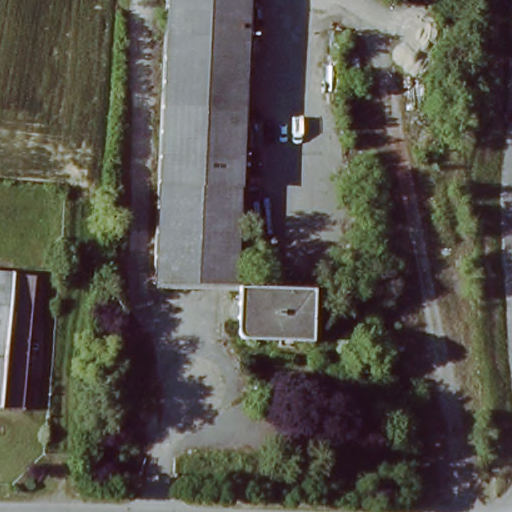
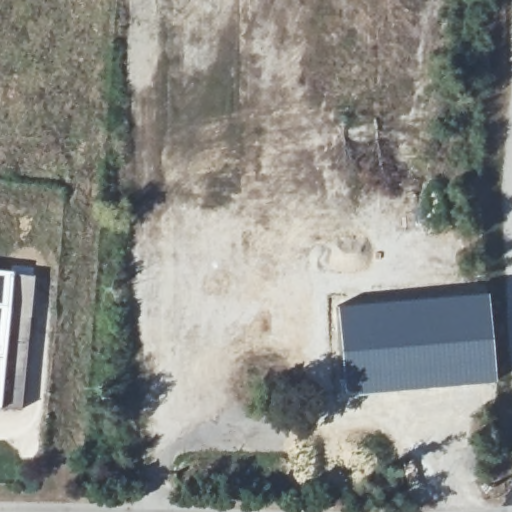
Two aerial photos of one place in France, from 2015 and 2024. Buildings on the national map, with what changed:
demolished [(239,0),(238,9),(158,6),(158,0),(239,0)]
demolished [(151,205),(158,6),(238,9),(231,209),(151,205)]
demolished [(231,209),(229,281),(228,284),(148,280),(151,205),(231,209)]
unchanged [(0,270),(6,271),(2,305),(26,308),(18,409),(0,407),(0,270)]
demolished [(229,281),(307,285),(306,340),(225,337),(228,284),(229,281)]
new [(487,291),(495,382),(341,395),(336,306),(487,291)]

